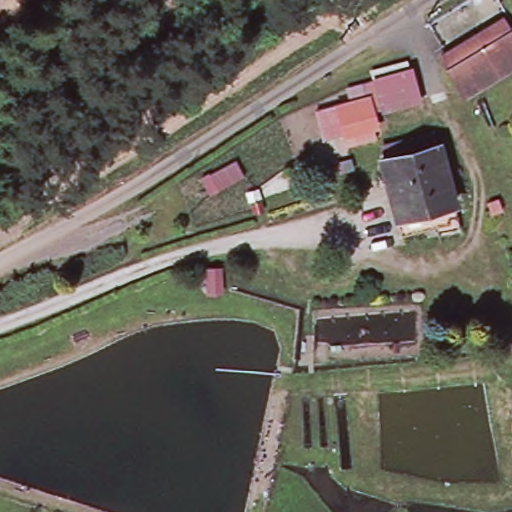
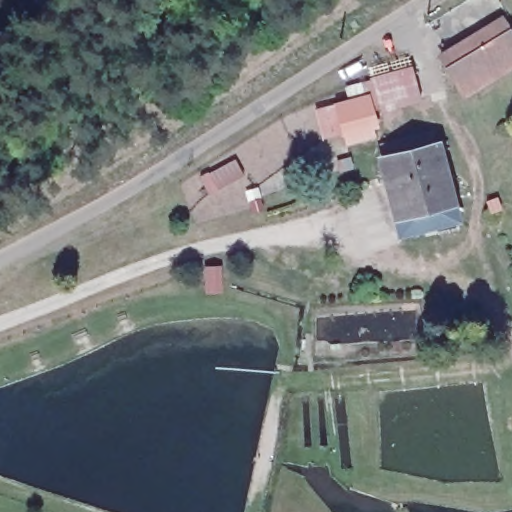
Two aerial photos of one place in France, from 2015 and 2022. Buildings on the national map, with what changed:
unchanged [(489,28),(504,20),(510,31),(512,34),(512,68),(465,96),(442,56),(489,28)]
unchanged [(372,75),(410,61),(420,89),(382,103),(372,75)]
unchanged [(336,109),(352,104),(367,99),(375,125),(380,138),(364,143),(349,148),(345,135),(336,109)]
unchanged [(374,148),(427,130),(445,186),(392,203),(374,148)]
unchanged [(455,216),(402,233),(392,203),(445,186),(455,216)]
unchanged [(205,273),(222,271),(220,299),(203,296),(205,273)]

